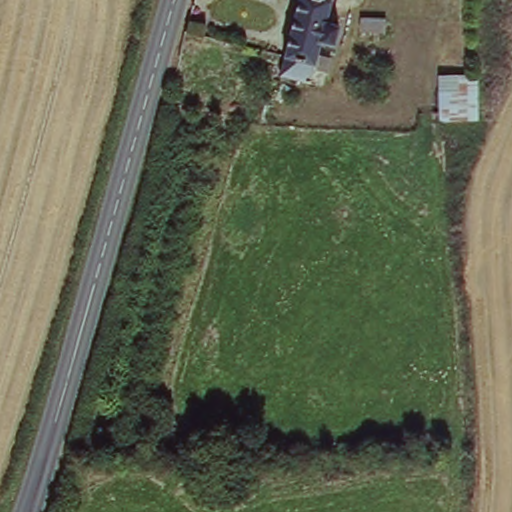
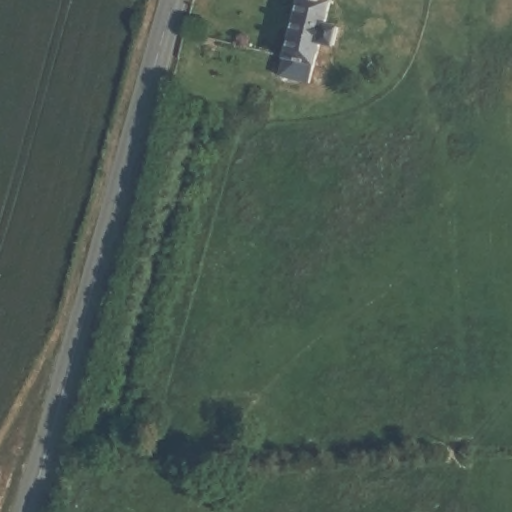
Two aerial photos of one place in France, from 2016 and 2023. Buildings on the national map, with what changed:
unchanged [(335,27),(328,47),(318,45),(313,60),(322,64),(319,77),(308,75),(305,82),(277,75),(297,0),(331,0),(325,24),(335,27)]

